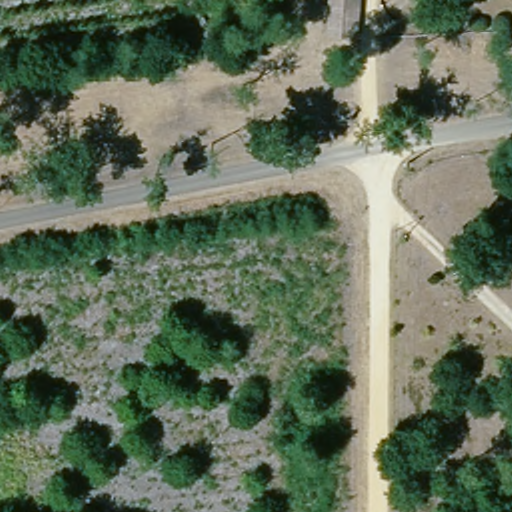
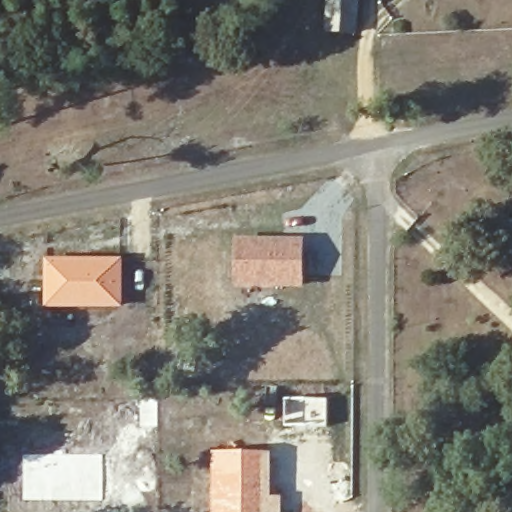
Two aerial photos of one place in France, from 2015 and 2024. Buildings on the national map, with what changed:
unchanged [(329,0),(357,0),(355,24),(327,24),(329,0)]
new [(232,236),(303,237),(302,288),(230,287),(232,236)]
new [(44,257),(122,257),(122,307),(44,307),(44,257)]
new [(283,399),(325,399),(325,425),(283,426),(283,399)]
new [(210,451),(270,452),(271,496),(281,496),(281,512),(210,512),(210,451)]

